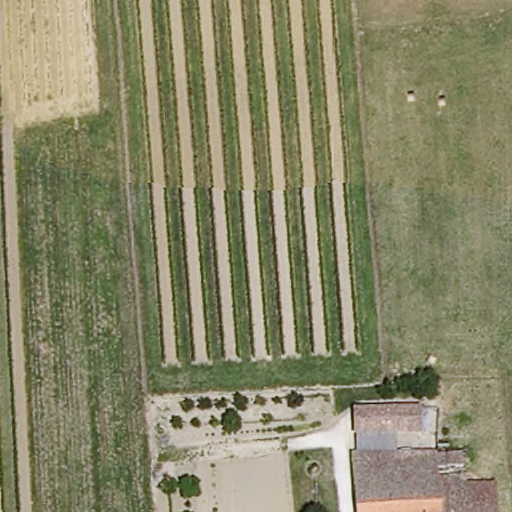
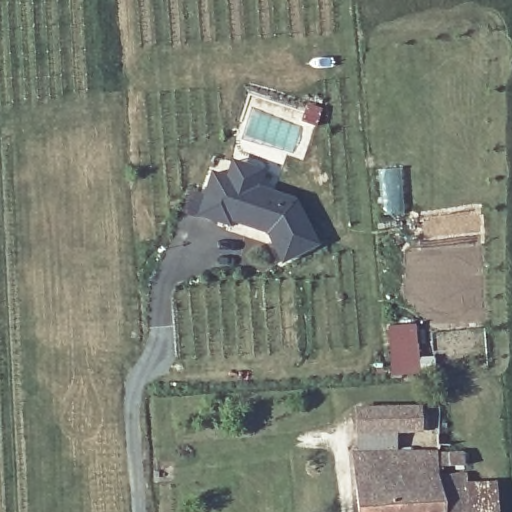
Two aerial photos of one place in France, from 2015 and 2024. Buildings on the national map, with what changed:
new [(195,217),(210,171),(225,175),(229,160),(261,171),(256,187),(295,200),(317,245),(280,264),(265,234),(230,220),(228,226),(195,217)]
new [(387,327),(414,324),(418,374),(390,378),(387,327)]
unchanged [(421,406),(420,429),(399,429),(398,453),(355,454),(356,406),(394,406),(421,406)]
demolished [(472,411),(470,437),(450,436),(450,446),(437,446),(437,411),(472,411)]
unchanged [(355,454),(360,454),(398,453),(440,452),(440,467),(440,475),(442,512),(362,512),(355,454)]
unchanged [(440,475),(465,475),(465,486),(492,485),(495,512),(442,512),(440,475)]

